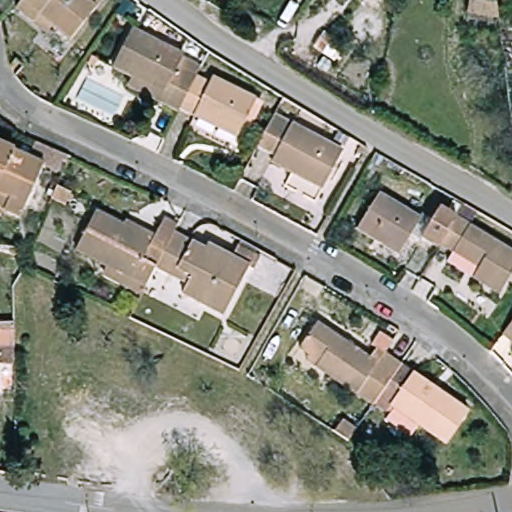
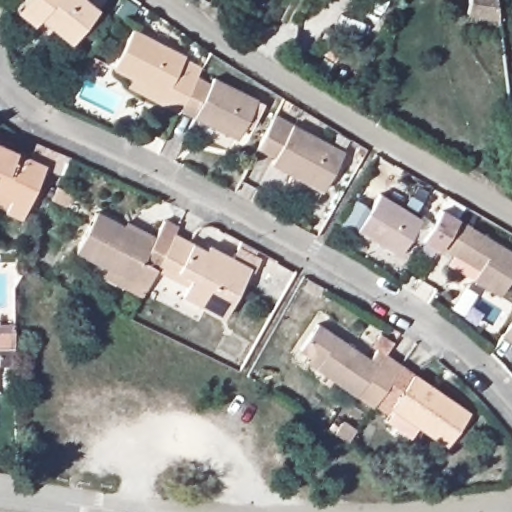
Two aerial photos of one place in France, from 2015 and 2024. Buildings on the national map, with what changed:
unchanged [(99,4),(64,48),(33,23),(27,30),(10,15),(21,0),(94,0),(99,4)]
unchanged [(497,19),(466,13),(468,0),(495,0),(497,19)]
unchanged [(126,73),(106,64),(126,25),(179,51),(178,54),(196,63),(191,72),(173,105),(172,108),(155,100),(120,84),(126,73)]
unchanged [(251,95),(231,135),(173,105),(191,72),(204,79),(207,73),(251,95)]
unchanged [(338,147),(317,187),(265,159),(269,152),(251,142),(266,115),(269,110),(338,147)]
unchanged [(15,151),(14,152),(28,158),(35,143),(59,153),(69,157),(60,175),(43,168),(21,218),(4,211),(4,210),(0,208),(0,145),(15,151)]
unchanged [(65,208),(49,200),(55,186),(71,194),(65,208)]
unchanged [(393,253),(350,227),(374,188),(417,215),(393,253)]
unchanged [(415,235),(434,204),(451,214),(512,251),(512,259),(493,291),(466,275),(441,259),(446,250),(434,242),(432,244),(415,235)]
unchanged [(99,278),(103,269),(70,252),(90,212),(147,241),(157,222),(171,229),(169,234),(151,269),(141,288),(137,297),(99,278)]
unchanged [(151,269),(169,234),(200,250),(202,246),(226,258),(235,241),(250,249),(253,251),(250,255),(256,258),(249,272),(244,269),(219,318),(177,296),(182,285),(168,278),(151,269)]
unchanged [(497,330),(512,309),(512,337),(510,340),(497,330)]
unchanged [(400,366),(374,405),(371,408),(315,368),(319,363),(299,349),(316,324),(369,359),(376,349),(401,366),(400,366)]
unchanged [(10,368),(0,368),(0,350),(9,350),(10,368)]
unchanged [(385,422),(390,415),(388,413),(374,405),(400,366),(469,413),(446,446),(418,427),(410,439),(385,422)]
unchanged [(347,442),(334,433),(342,421),(356,430),(347,442)]

